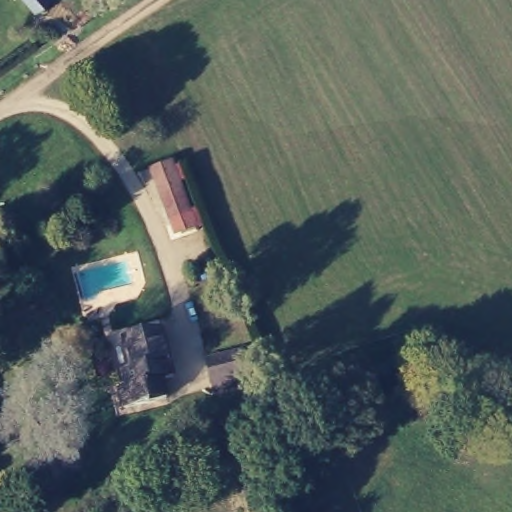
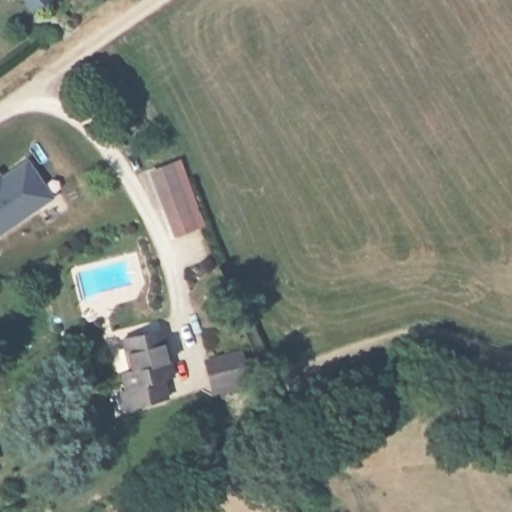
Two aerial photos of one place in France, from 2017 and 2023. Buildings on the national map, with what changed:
new [(36,11),(26,0),(49,0),(36,11)]
new [(0,172),(1,174),(27,157),(52,196),(0,232),(0,172)]
unchanged [(173,161),(176,167),(181,164),(203,226),(174,236),(148,170),(173,161)]
unchanged [(126,409),(123,390),(130,389),(125,371),(135,369),(127,337),(167,330),(177,376),(169,378),(172,400),(126,409)]
unchanged [(212,385),(206,360),(242,352),(249,377),(212,385)]

